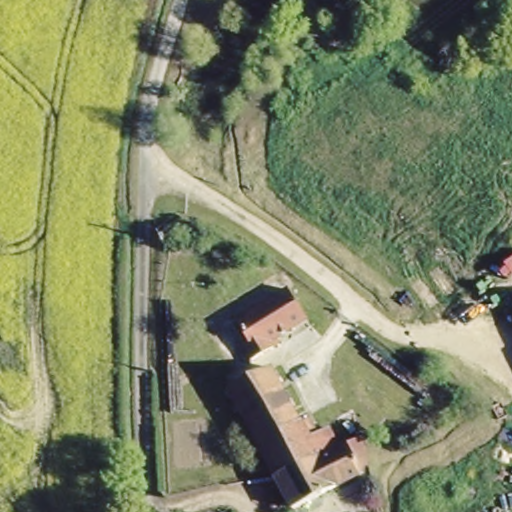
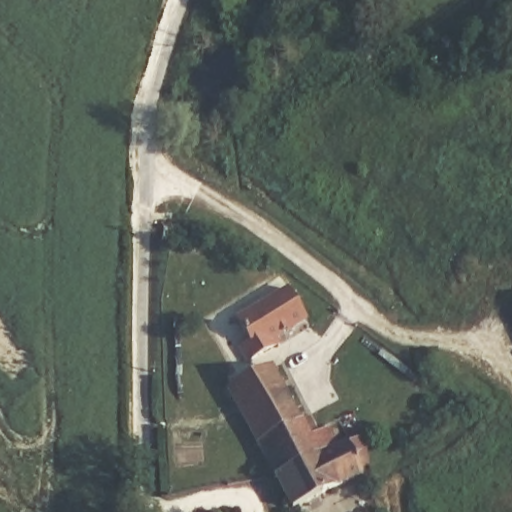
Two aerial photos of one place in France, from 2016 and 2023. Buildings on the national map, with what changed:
unchanged [(281,289),(299,319),(266,338),(271,345),(243,360),(244,362),(242,364),(231,347),(241,342),(228,320),(281,289)]
unchanged [(511,314),(512,314),(512,316),(511,314)]
unchanged [(246,442),(220,394),(262,372),(299,443),(319,431),(329,449),(312,458),(268,481),(246,442)]
unchanged [(288,512),(283,512),(268,481),(312,458),(314,463),(355,442),(359,467),(359,469),(351,473),(354,479),(288,512)]

